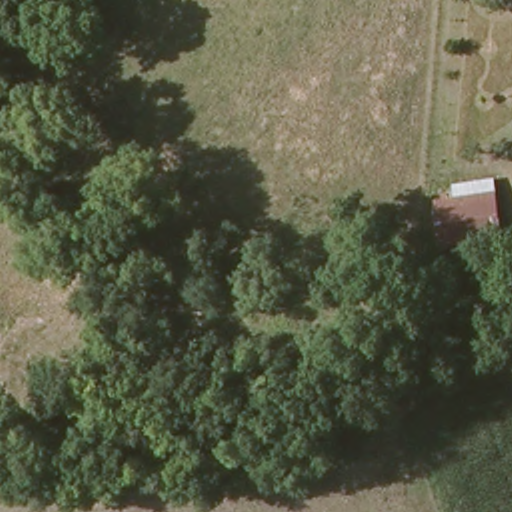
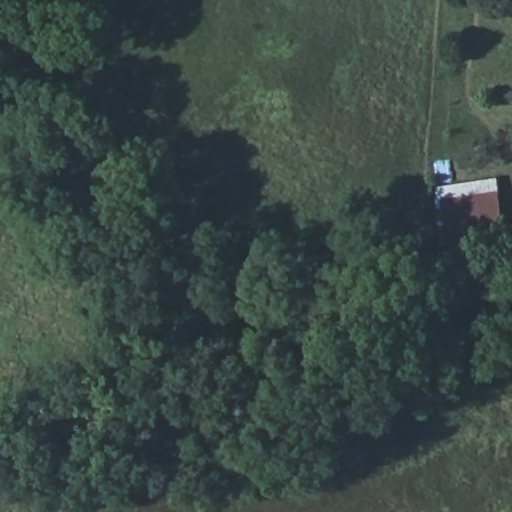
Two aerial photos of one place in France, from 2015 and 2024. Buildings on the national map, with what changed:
unchanged [(505,237),(440,246),(433,199),(456,195),(453,180),(495,174),(505,237)]

